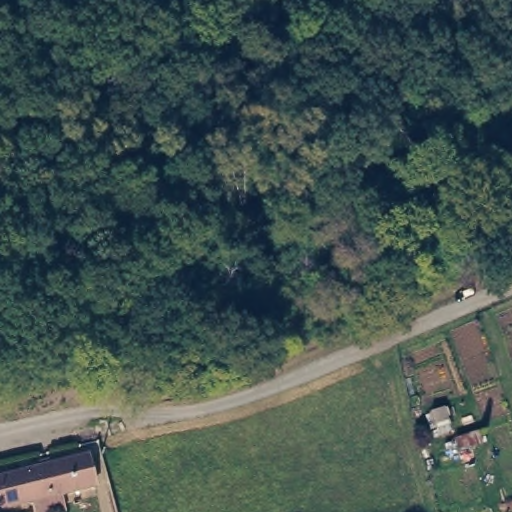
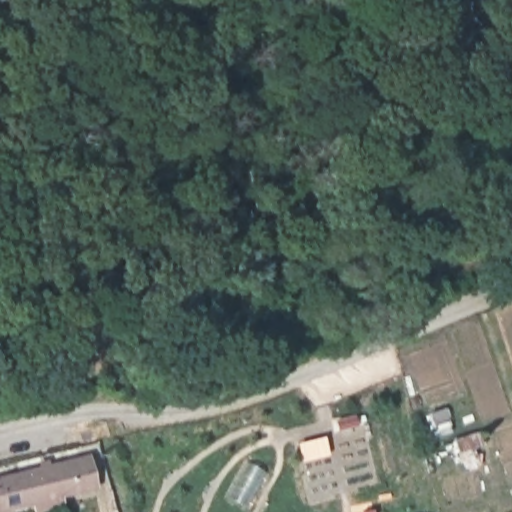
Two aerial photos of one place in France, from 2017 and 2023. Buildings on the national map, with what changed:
unchanged [(95,419),(57,428),(52,411),(90,402),(95,419)]
unchanged [(38,512),(35,497),(0,506),(0,473),(88,451),(96,482),(60,491),(64,507),(44,512),(38,512)]

